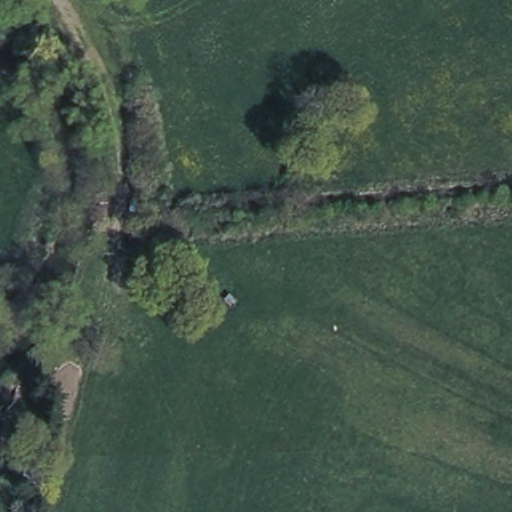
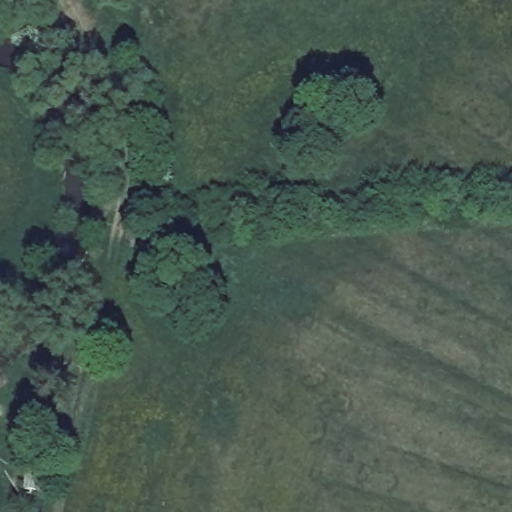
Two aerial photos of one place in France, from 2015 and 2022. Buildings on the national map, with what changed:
unchanged [(25,457),(45,461),(42,491),(20,488),(25,457)]

